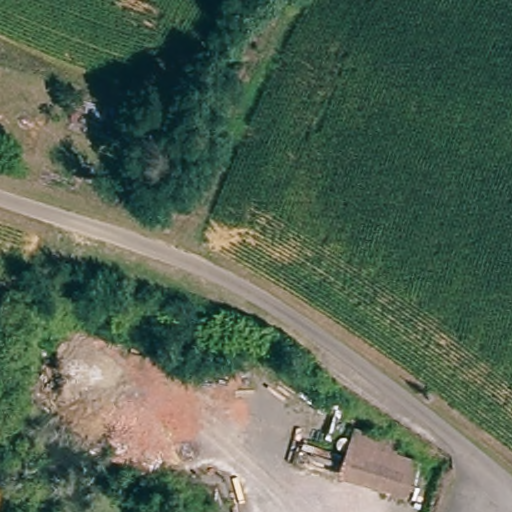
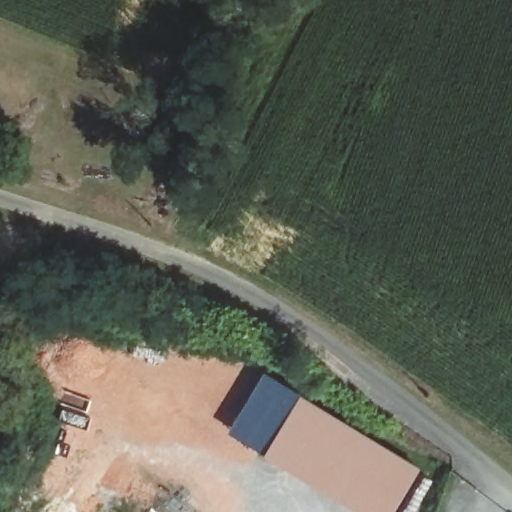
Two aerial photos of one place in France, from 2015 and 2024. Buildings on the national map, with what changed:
new [(264,373),(300,395),(274,438),(264,455),(227,433),(264,373)]
new [(421,467),(394,512),(360,512),(264,455),(300,395),(421,467)]

